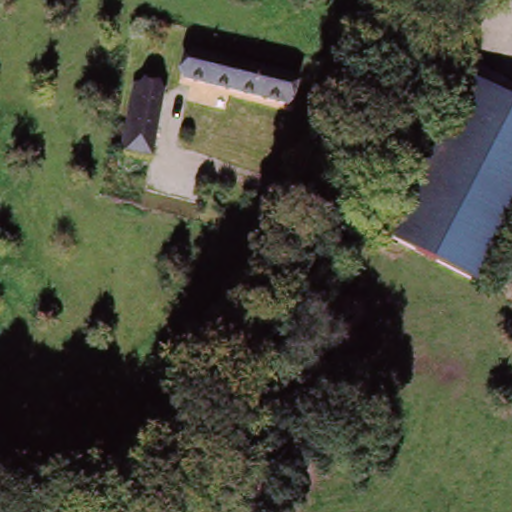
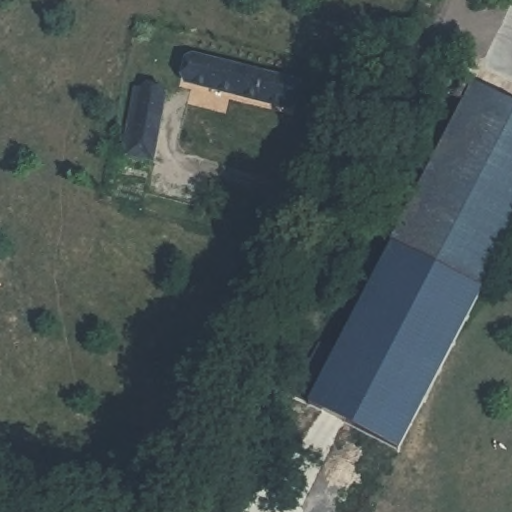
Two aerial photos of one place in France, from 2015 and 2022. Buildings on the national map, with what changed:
unchanged [(184,85),(191,60),(300,88),(293,113),(184,85)]
new [(467,90),(470,83),(512,104),(512,113),(467,90)]
unchanged [(166,90),(152,150),(131,145),(145,85),(166,90)]
unchanged [(389,241),(398,220),(457,105),(467,90),(512,113),(512,221),(478,287),(389,241)]
new [(478,287),(512,221),(512,234),(482,291),(400,452),(306,406),(389,241),(478,287)]

